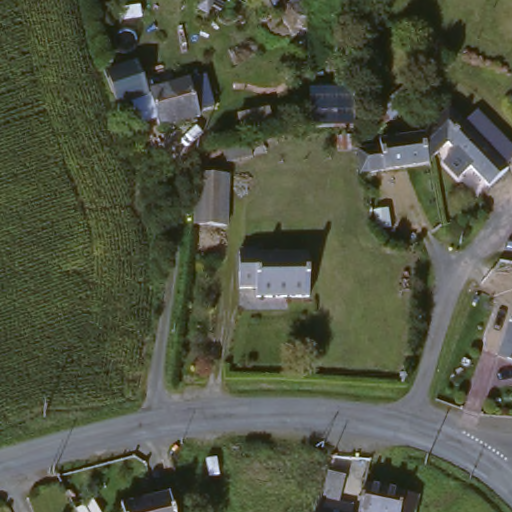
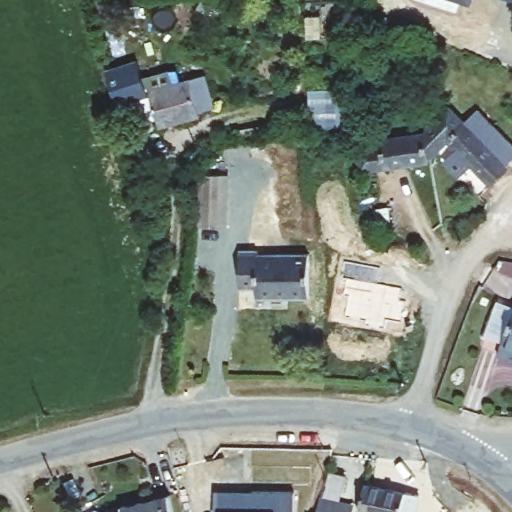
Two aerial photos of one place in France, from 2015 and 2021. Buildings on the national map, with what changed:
unchanged [(132,66),(146,86),(151,96),(125,111),(108,79),(132,66)]
unchanged [(179,83),(181,88),(204,76),(218,105),(194,116),(196,120),(161,137),(157,128),(150,131),(144,120),(150,116),(143,101),(179,83)]
unchanged [(339,126),(300,130),(293,130),(294,108),(313,108),(313,85),(340,85),(339,126)]
unchanged [(393,117),(383,101),(403,86),(413,101),(393,117)]
unchanged [(426,135),(452,111),(464,123),(474,112),(512,150),(512,164),(509,167),(512,172),(512,173),(493,191),(475,173),(464,185),(447,169),(459,156),(451,149),(433,165),(426,135)]
unchanged [(384,145),(383,141),(399,139),(400,139),(426,135),(433,165),(366,179),(360,151),(384,145)]
unchanged [(246,150),(248,163),(222,170),(219,156),(246,150)]
unchanged [(227,179),(224,235),(188,233),(189,178),(227,179)]
unchanged [(262,249),(262,254),(309,253),(313,295),(258,297),(258,288),(241,288),(239,249),(262,249)]
unchanged [(493,355),(509,313),(512,314),(512,363),(493,355)]
unchanged [(323,499),(329,479),(345,483),(339,505),(323,499)]
unchanged [(418,503),(416,512),(358,512),(364,487),(418,503)]
new [(218,494),(251,495),(293,497),(292,512),(217,512),(218,494)]
unchanged [(163,498),(167,512),(115,512),(163,498)]
unchanged [(319,506),(350,512),(317,512),(319,506)]

